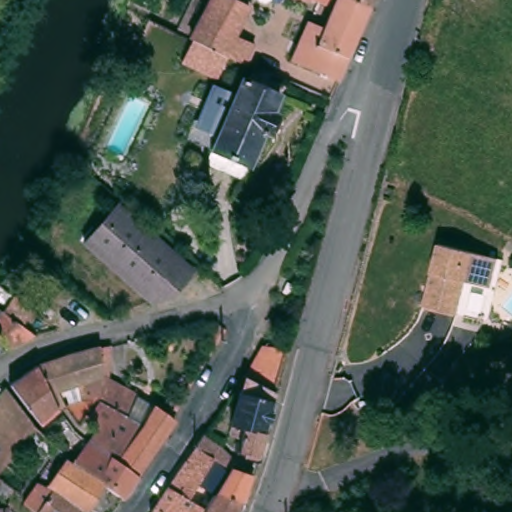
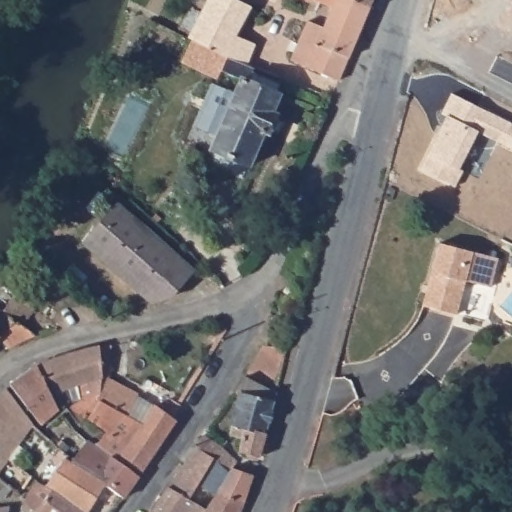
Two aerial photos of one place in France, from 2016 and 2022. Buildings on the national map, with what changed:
unchanged [(196,39),(181,33),(193,6),(210,13),(216,0),(240,0),(254,6),(242,35),(233,55),(223,77),(187,62),(196,39)]
unchanged [(313,28),(326,33),(337,8),(317,0),(352,0),(373,8),(345,76),(301,58),(313,28)]
unchanged [(311,0),(317,0),(315,2),(311,0)]
unchanged [(376,0),(373,8),(352,0),(376,0)]
unchanged [(229,167),(210,159),(216,146),(213,145),(243,75),(250,78),(253,70),(285,83),(275,107),(277,109),(268,129),(266,128),(252,161),(250,162),(245,174),(229,167)]
new [(441,113),(451,93),(512,124),(512,149),(477,131),(458,168),(462,170),(453,186),(419,169),(446,116),(441,113)]
unchanged [(186,263),(164,290),(144,293),(77,236),(110,198),(186,263)]
unchanged [(500,256),(492,285),(467,278),(458,313),(423,303),(441,240),(500,256)]
unchanged [(38,328),(27,330),(11,340),(0,331),(0,301),(38,328)]
unchanged [(143,388),(142,391),(160,397),(182,411),(143,467),(103,439),(113,425),(94,413),(90,410),(86,419),(72,399),(84,397),(81,380),(62,384),(71,397),(64,403),(40,359),(103,341),(113,338),(111,373),(132,383),(143,388)]
unchanged [(246,374),(263,342),(288,346),(277,389),(246,374)]
unchanged [(64,403),(46,419),(38,409),(15,378),(40,359),(64,403)]
unchanged [(275,399),(273,408),(260,454),(240,450),(242,429),(232,425),(246,374),(277,389),(274,398),(275,399)]
unchanged [(12,381),(39,420),(30,432),(12,456),(10,460),(34,476),(25,490),(16,484),(10,491),(0,485),(0,398),(12,381)]
unchanged [(94,507),(52,480),(60,469),(41,454),(47,445),(30,432),(39,420),(82,453),(115,477),(94,507)]
unchanged [(143,467),(130,488),(115,477),(82,453),(95,433),(103,439),(143,467)]
unchanged [(213,466),(208,462),(192,448),(198,440),(232,466),(229,470),(249,476),(239,503),(214,493),(217,489),(204,481),(213,466)]
unchanged [(208,462),(183,501),(189,505),(186,512),(150,512),(192,448),(208,462)]
unchanged [(94,507),(91,512),(50,512),(28,497),(41,476),(50,482),(52,480),(94,507)]
unchanged [(214,493),(239,503),(236,512),(202,512),(214,493)]
unchanged [(8,501),(12,501),(10,512),(0,512),(0,502),(8,501)]

